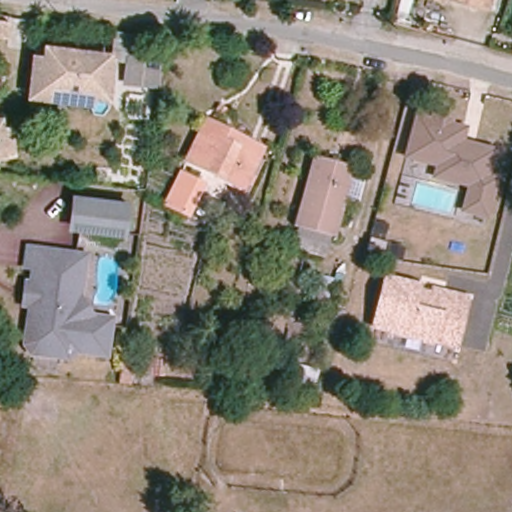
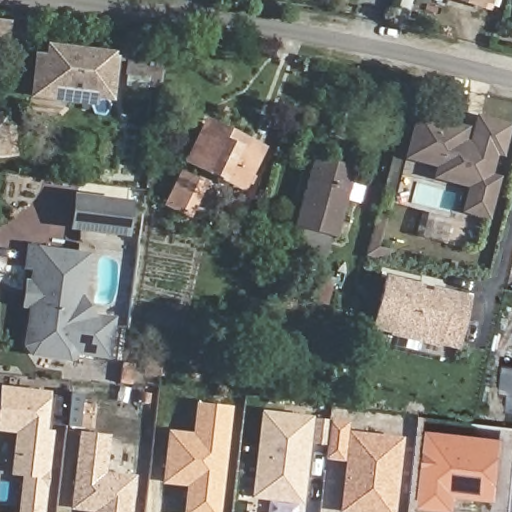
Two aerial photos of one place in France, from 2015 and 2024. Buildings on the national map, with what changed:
unchanged [(483,6),(461,0),(485,0),(483,6)]
new [(490,9),(483,6),(485,0),(493,0),(490,9)]
new [(10,23),(7,42),(0,42),(0,22),(10,23)]
unchanged [(44,57),(45,51),(63,52),(62,56),(72,57),(73,54),(103,56),(103,60),(101,89),(83,87),(83,93),(58,91),(59,85),(42,84),(42,75),(37,74),(38,56),(44,57)]
unchanged [(156,56),(153,80),(123,77),(125,53),(156,56)]
unchanged [(109,60),(106,95),(94,94),(93,100),(29,95),(32,56),(38,56),(37,74),(42,75),(42,84),(59,85),(58,91),(83,93),(83,87),(101,89),(103,60),(109,60)]
unchanged [(498,148),(490,175),(499,178),(487,219),(459,211),(465,185),(430,177),(432,165),(402,156),(414,110),(470,124),(466,140),(498,148)]
new [(476,115),(512,124),(503,156),(496,155),(498,148),(470,140),(476,115)]
unchanged [(2,125),(5,160),(0,160),(0,125),(2,125)]
unchanged [(245,151),(250,141),(264,148),(245,189),(187,160),(203,128),(245,151)]
unchanged [(354,166),(334,237),(296,226),(316,156),(354,166)]
unchanged [(204,185),(189,215),(167,204),(181,173),(204,185)]
unchanged [(79,199),(129,202),(127,232),(77,228),(79,199)]
unchanged [(88,255),(82,299),(94,315),(114,318),(113,326),(109,356),(80,351),(80,352),(71,358),(34,352),(28,345),(33,305),(26,303),(31,266),(28,266),(31,246),(80,254),(88,255)]
new [(512,268),(512,272),(511,271),(512,268)]
unchanged [(472,295),(458,348),(436,345),(370,329),(382,274),(422,283),(472,295)]
unchanged [(330,307),(311,303),(316,275),(334,280),(330,307)]
unchanged [(134,365),(131,383),(120,382),(122,363),(134,365)]
unchanged [(156,365),(154,380),(141,378),(142,364),(156,365)]
new [(510,396),(500,394),(503,366),(511,367),(510,375),(512,375),(512,411),(507,410),(510,396)]
new [(17,512),(22,476),(10,475),(14,433),(0,431),(0,385),(50,390),(50,394),(68,396),(69,392),(82,393),(78,425),(47,421),(46,428),(53,430),(44,512),(17,512)]
new [(161,483),(168,429),(193,432),(196,401),(231,406),(220,512),(183,512),(185,486),(161,483)]
new [(251,498),(261,410),(312,415),(312,419),(326,420),(323,445),(310,443),(302,504),(251,498)]
new [(325,460),(329,420),(349,422),(348,430),(403,436),(395,512),(339,512),(344,461),(325,460)]
new [(109,435),(106,471),(136,475),(131,512),(87,512),(68,509),(78,430),(109,435)]
new [(455,511),(419,507),(428,430),(503,439),(496,502),(458,497),(455,511)]

